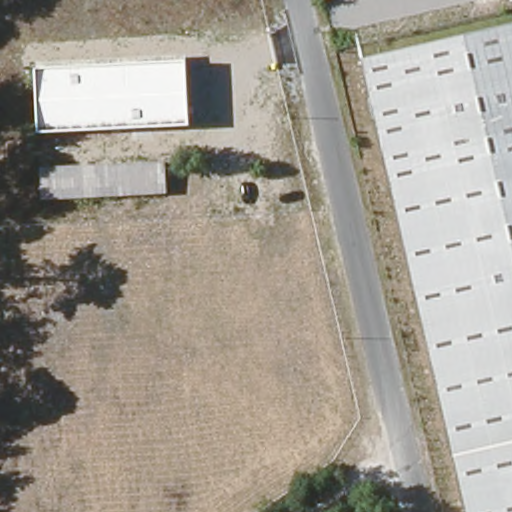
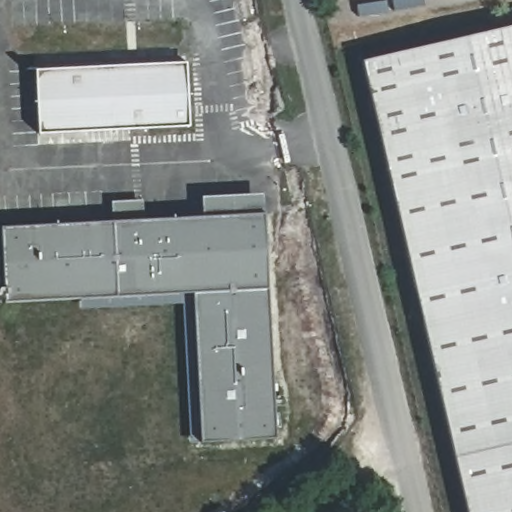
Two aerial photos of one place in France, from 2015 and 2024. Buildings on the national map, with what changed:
unchanged [(512,25),(512,512),(465,512),(360,59),(512,25)]
unchanged [(185,64),(189,129),(39,138),(35,73),(185,64)]
demolished [(166,166),(168,196),(43,204),(41,173),(166,166)]
new [(11,302),(7,226),(209,218),(207,196),(267,192),(268,214),(267,288),(276,437),(201,441),(194,292),(11,302)]

